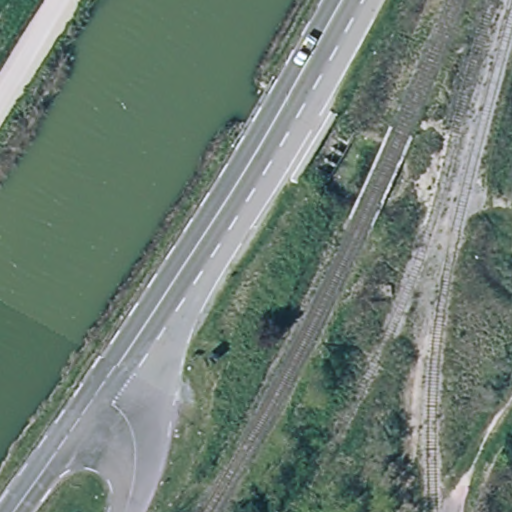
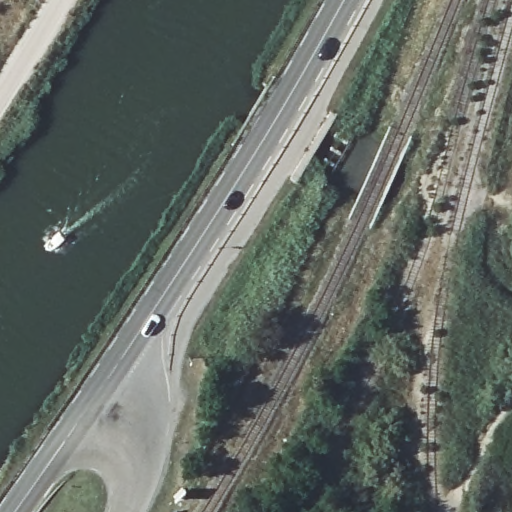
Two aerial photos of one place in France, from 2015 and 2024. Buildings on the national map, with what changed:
unchanged [(385,286),(391,285),(392,295),(386,296),(385,286)]

